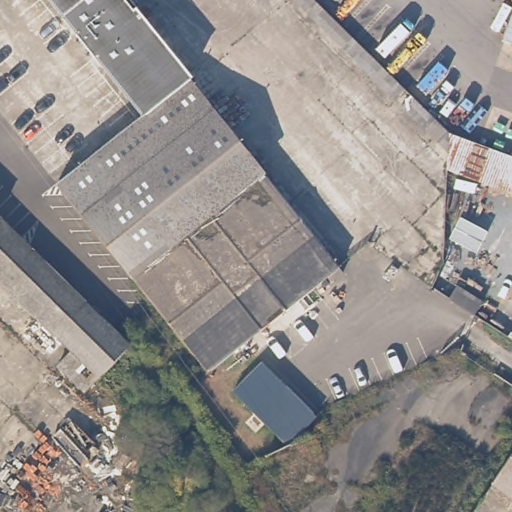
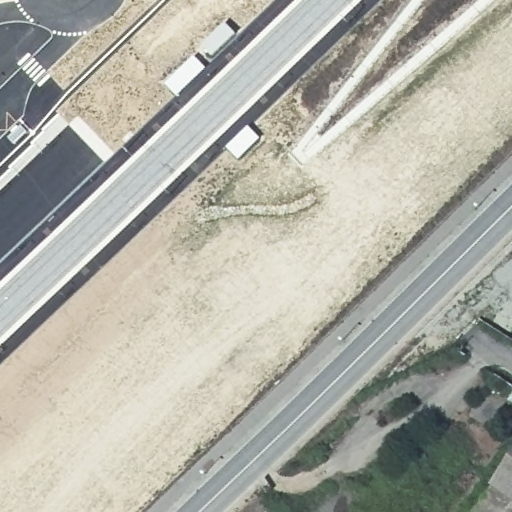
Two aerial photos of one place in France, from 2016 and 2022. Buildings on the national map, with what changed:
demolished [(189,77),(143,111),(96,52),(92,54),(77,34),(80,32),(54,0),(128,0),(189,77)]
demolished [(143,111),(189,77),(192,81),(253,159),(121,268),(55,181),(143,111)]
demolished [(337,265),(202,372),(121,268),(253,159),(337,265)]
demolished [(0,282),(0,222),(84,302),(55,334),(0,282)]
demolished [(55,334),(84,302),(127,343),(96,374),(55,334)]
demolished [(226,380),(255,351),(317,412),(280,432),(226,380)]
demolished [(326,419),(316,430),(337,490),(301,506),(279,444),(290,441),(280,432),(317,412),(326,419)]
demolished [(413,512),(360,512),(414,435),(448,458),(413,512)]
unchanged [(512,512),(473,512),(512,454),(512,512)]

